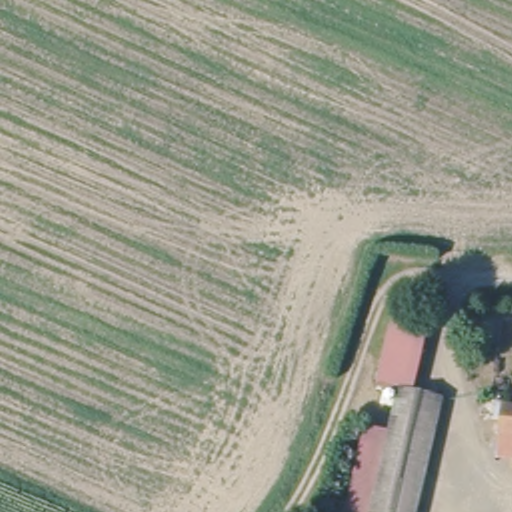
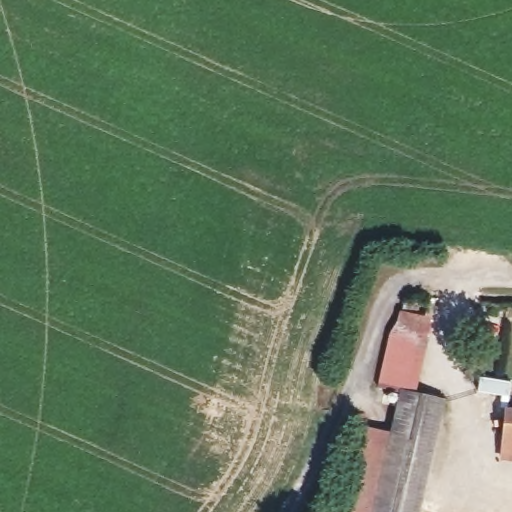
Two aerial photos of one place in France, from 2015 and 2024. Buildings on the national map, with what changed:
unchanged [(373,428),(392,432),(403,389),(381,385),(393,337),(404,320),(436,325),(420,393),(450,400),(423,512),(352,512),(373,428)]
unchanged [(503,457),(507,403),(512,403),(512,458),(503,457)]

